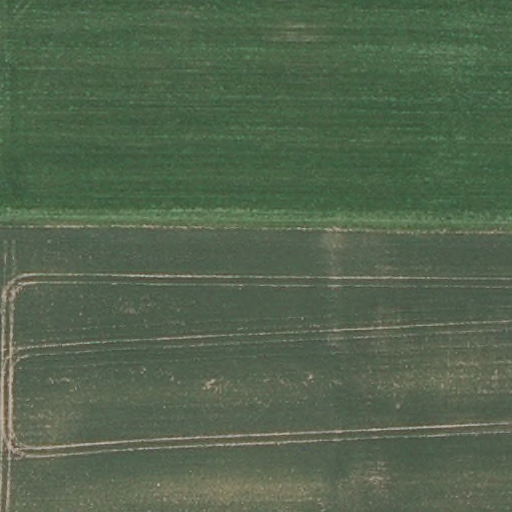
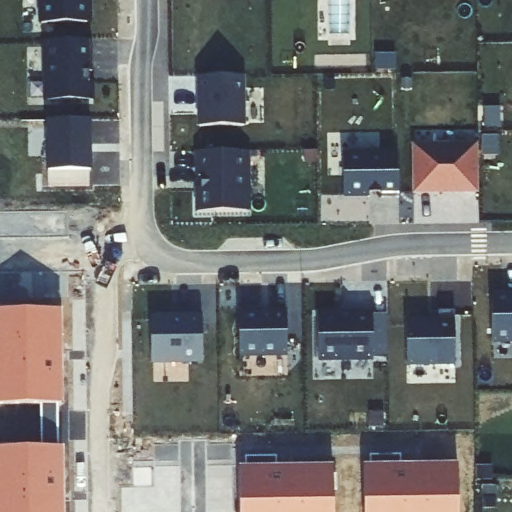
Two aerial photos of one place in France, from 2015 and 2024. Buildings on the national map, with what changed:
new [(90,24),(45,25),(45,0),(89,0),(90,24)]
new [(94,42),(95,73),(92,73),(92,102),(50,102),(49,42),(94,42)]
new [(242,122),(198,122),(200,72),(244,73),(242,122)]
new [(91,122),(92,154),(93,154),(93,172),(92,172),(92,186),(52,187),(51,122),(91,122)]
new [(417,193),(416,146),(480,146),(481,193),(417,193)]
new [(245,152),(247,212),(202,212),(201,152),(245,152)]
new [(400,199),(384,199),(383,194),(372,194),(372,196),(346,196),(345,154),(400,153),(400,199)]
new [(494,342),(493,296),(512,295),(512,341),(494,342)]
new [(242,357),(242,309),(265,309),(265,313),(289,312),(290,356),(242,357)]
new [(64,405),(0,405),(0,312),(62,310),(64,405)]
new [(441,321),(440,311),(457,311),(457,363),(409,364),(409,322),(441,321)]
new [(354,315),(354,313),(375,313),(375,358),(321,359),(320,316),(354,315)]
new [(189,361),(187,381),(154,380),(154,361),(150,362),(152,318),(186,319),(185,315),(204,316),(202,362),(189,361)]
new [(65,512),(0,512),(0,447),(64,447),(65,512)]
new [(373,458),(402,457),(400,467),(459,465),(459,512),(366,512),(367,470),(372,469),(373,458)]
new [(248,459),(279,459),(280,471),(335,470),(335,512),(242,512),(242,472),(248,472),(248,459)]

